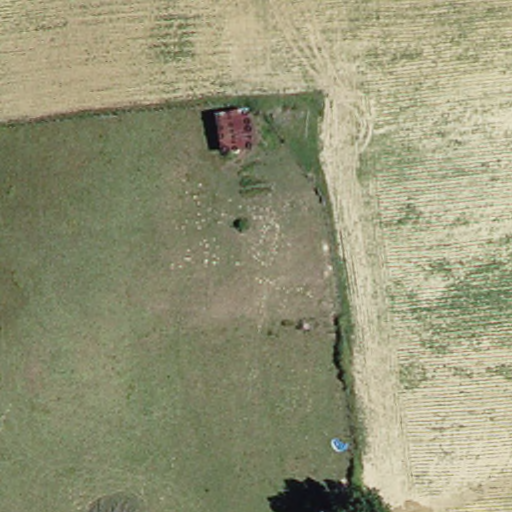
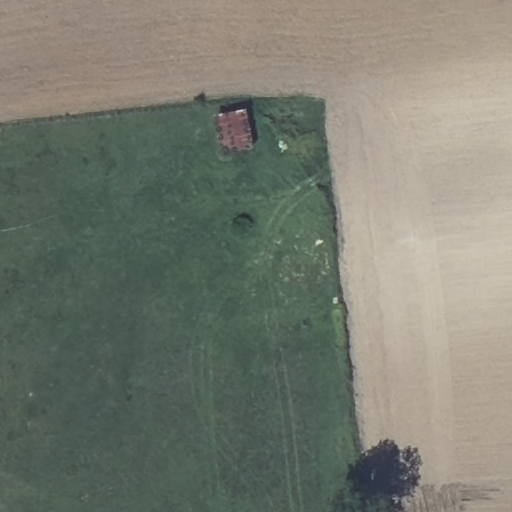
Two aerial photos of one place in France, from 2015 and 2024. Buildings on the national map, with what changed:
unchanged [(258,115),(261,152),(227,155),(224,117),(258,115)]

